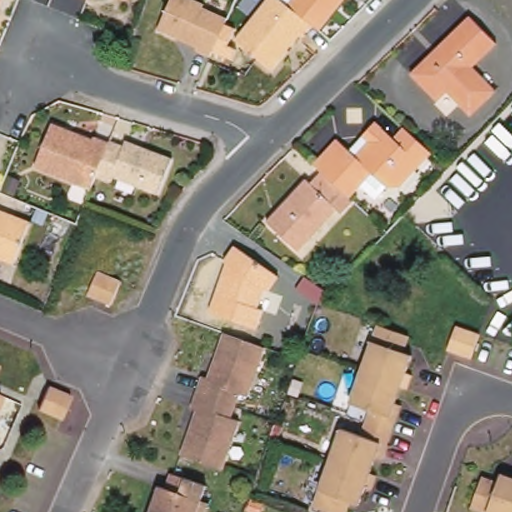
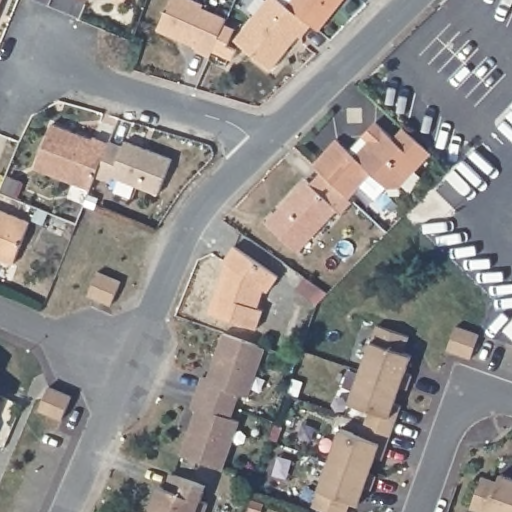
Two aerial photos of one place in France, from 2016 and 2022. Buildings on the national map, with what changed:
unchanged [(167,0),(188,0),(199,5),(198,8),(222,19),(211,44),(205,58),(192,52),(194,48),(154,31),(167,0)]
unchanged [(265,0),(281,0),(283,2),(310,24),(300,36),(297,34),(270,68),(234,39),(265,0)]
unchanged [(314,27),(310,24),(283,2),(285,0),(336,0),(315,27),(314,27)]
demolished [(440,91),(430,100),(404,72),(425,53),(428,57),(440,47),(443,43),(440,39),(465,16),(491,44),(465,67),(488,92),(463,116),(440,91)]
unchanged [(354,197),(353,197),(325,171),(318,163),(341,138),(360,155),(365,149),(373,140),(367,135),(381,121),(399,138),(410,127),(436,152),(405,185),(391,187),(375,173),(369,180),(354,197)]
unchanged [(49,123),(89,140),(90,138),(105,144),(91,177),(89,183),(85,190),(30,167),(49,123)]
unchanged [(120,147),(121,141),(167,160),(154,195),(107,177),(106,182),(91,177),(105,144),(105,142),(120,147)]
unchanged [(353,197),(354,197),(357,200),(346,213),(341,209),(303,250),(271,221),(310,178),(315,182),(325,171),(353,197)]
unchanged [(25,222),(9,264),(0,260),(0,211),(25,222)]
unchanged [(215,284),(227,269),(220,264),(231,249),(273,279),(263,294),(259,291),(252,309),(258,310),(252,329),(205,313),(215,284)]
unchanged [(120,282),(115,292),(110,304),(87,295),(97,272),(120,282)]
unchanged [(405,335),(400,350),(408,353),(405,362),(402,370),(408,373),(403,387),(399,385),(397,384),(391,401),(397,403),(395,411),(388,430),(378,457),(372,455),(367,468),(366,471),(372,473),(367,487),(361,485),(360,488),(355,503),(346,500),(343,509),(342,512),(331,512),(325,510),(315,506),(310,504),(319,477),(325,460),(326,458),(326,457),(330,445),(337,426),(351,431),(357,433),(362,421),(366,408),(346,401),(351,387),(357,370),(358,368),(363,355),(375,322),(405,334),(405,335)]
unchanged [(482,333),(475,355),(451,348),(459,325),(482,333)]
unchanged [(199,378),(205,380),(220,334),(261,349),(245,397),(235,394),(230,407),(226,419),(235,422),(219,470),(177,456),(193,413),(187,411),(193,394),(199,378)]
unchanged [(54,383),(75,393),(66,414),(44,404),(52,383),(54,383)]
unchanged [(477,475),(493,481),(495,477),(496,473),(512,478),(512,512),(481,512),(466,507),(475,481),(477,475)]
unchanged [(157,488),(161,475),(195,487),(191,500),(198,503),(195,512),(142,512),(151,486),(157,488)]

